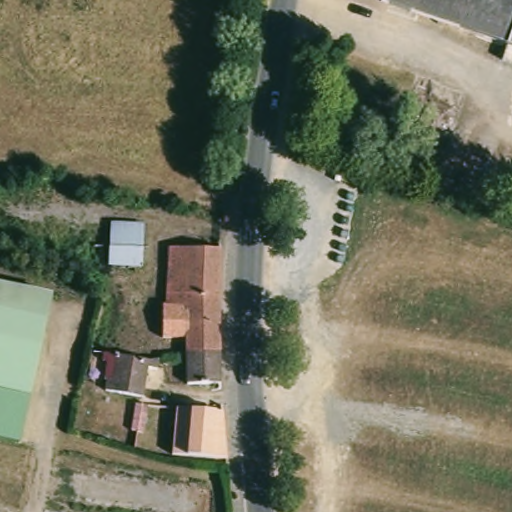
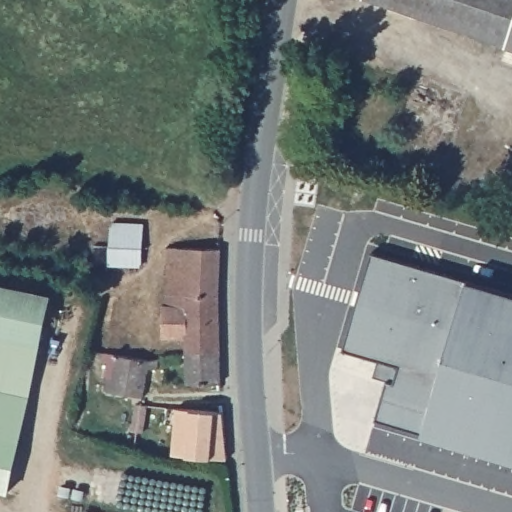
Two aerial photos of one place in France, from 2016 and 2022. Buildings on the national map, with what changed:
unchanged [(512,40),(511,44),(380,0),(512,0),(512,40)]
unchanged [(512,40),(512,45),(511,44),(512,40)]
unchanged [(146,225),(145,266),(113,265),(114,225),(146,225)]
unchanged [(224,290),(225,344),(205,346),(192,347),(191,332),(167,331),(174,242),(224,243),(224,290)]
new [(377,419),(387,380),(374,376),(379,358),(345,348),(372,252),(470,280),(512,292),(512,460),(423,434),(377,419)]
unchanged [(52,294),(32,397),(0,389),(0,283),(52,294)]
unchanged [(205,346),(225,344),(226,375),(193,378),(192,351),(192,347),(205,346)]
unchanged [(154,353),(162,353),(161,363),(151,362),(147,392),(111,384),(112,374),(109,373),(109,371),(108,371),(111,356),(107,356),(108,347),(154,353)]
unchanged [(32,397),(22,444),(0,439),(0,389),(32,397)]
unchanged [(229,457),(182,452),(184,409),(224,412),(229,457)]

